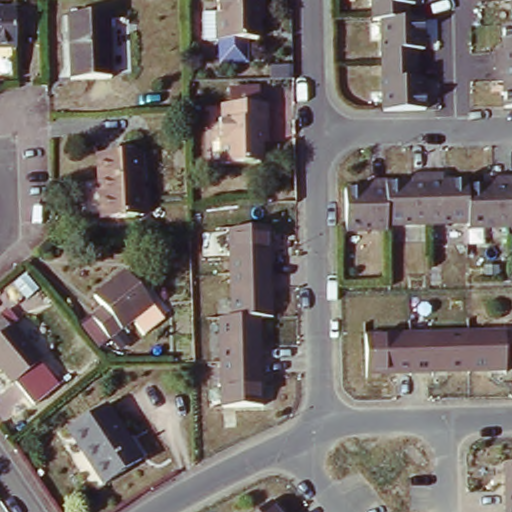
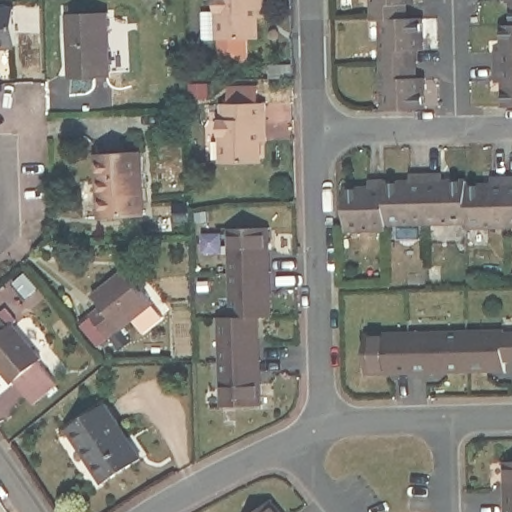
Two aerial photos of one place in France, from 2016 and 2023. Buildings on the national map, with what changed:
unchanged [(261,38),(207,41),(206,23),(222,22),(222,0),(269,0),(269,14),(261,14),(261,38)]
unchanged [(383,26),(382,0),(424,0),(424,10),(418,10),(419,23),(432,23),(433,55),(426,56),(427,82),(435,82),(435,115),(394,116),(390,25),(383,26)]
unchanged [(12,12),(44,11),(45,37),(13,39),(14,51),(0,52),(0,14),(11,14),(12,12)]
unchanged [(113,12),(115,77),(74,79),(72,14),(113,12)]
unchanged [(512,89),(505,90),(504,57),(512,57),(512,89)]
unchanged [(268,119),(268,138),(259,137),(260,163),(221,164),(219,105),(266,104),(268,119)]
unchanged [(146,153),(148,216),(106,217),(103,155),(146,153)]
unchanged [(470,228),(391,230),(391,235),(351,235),(350,194),(376,193),(376,185),(391,186),(391,189),(415,187),(415,179),(447,179),(447,187),(470,187),(470,190),(497,189),(497,182),(512,182),(512,231),(470,232),(470,228)]
unchanged [(269,229),(271,316),(260,317),(263,403),(220,406),(216,318),(230,317),(228,229),(269,229)]
unchanged [(124,276),(152,308),(109,343),(89,320),(101,310),(93,301),(124,276)]
unchanged [(3,319),(13,332),(17,328),(46,365),(17,387),(0,366),(0,322),(3,319)]
unchanged [(507,319),(512,319),(512,359),(509,359),(509,372),(370,375),(369,334),(508,330),(507,319)]
unchanged [(111,403),(147,459),(107,484),(71,428),(111,403)]
unchanged [(276,506),(281,512),(269,512),(276,506)]

